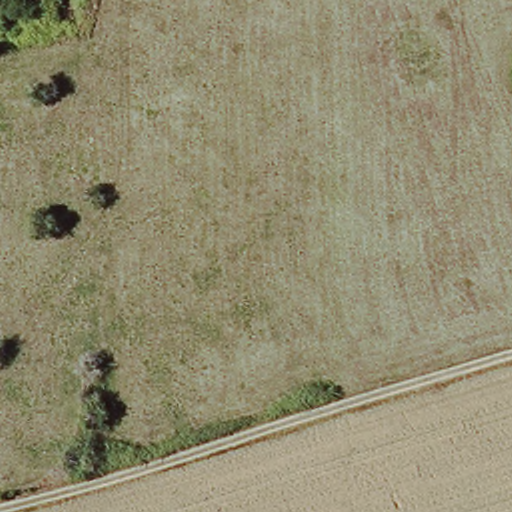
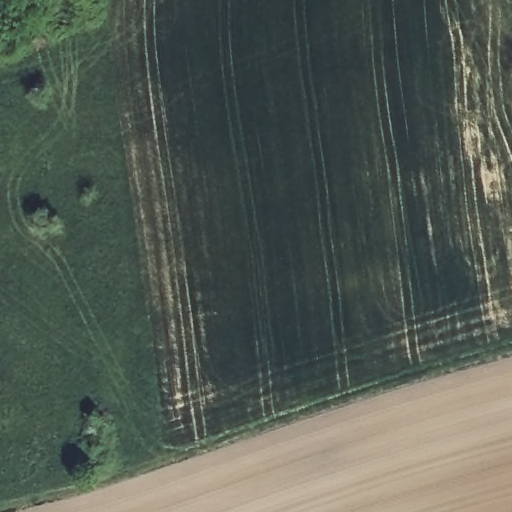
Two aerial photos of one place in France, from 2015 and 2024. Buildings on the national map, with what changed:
[]

